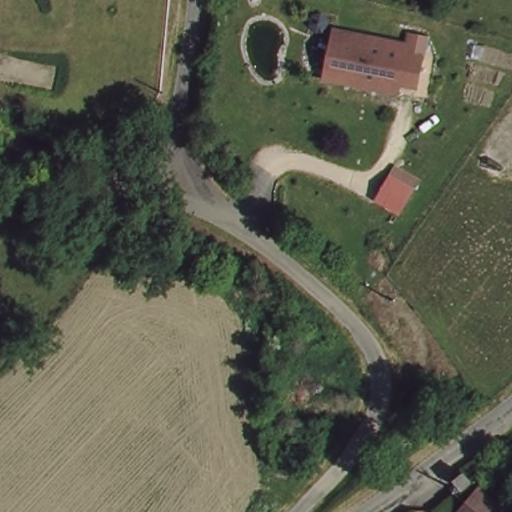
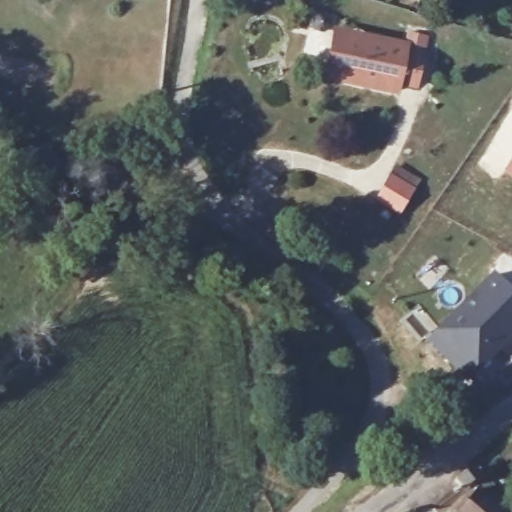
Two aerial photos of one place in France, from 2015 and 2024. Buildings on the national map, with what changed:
unchanged [(338,45),(341,28),(359,32),(411,42),(409,52),(426,55),(419,82),(403,79),(401,88),(349,77),(332,74),(336,57),(338,45)]
new [(512,157),(512,175),(504,170),(512,157)]
new [(374,200),(396,164),(422,179),(400,215),(374,200)]
new [(434,330),(493,272),(512,291),(512,336),(477,371),(466,381),(424,340),(434,330)]
unchanged [(474,489),(467,495),(461,488),(468,482),(474,489)]
unchanged [(474,512),(487,495),(508,512),(474,512)]

